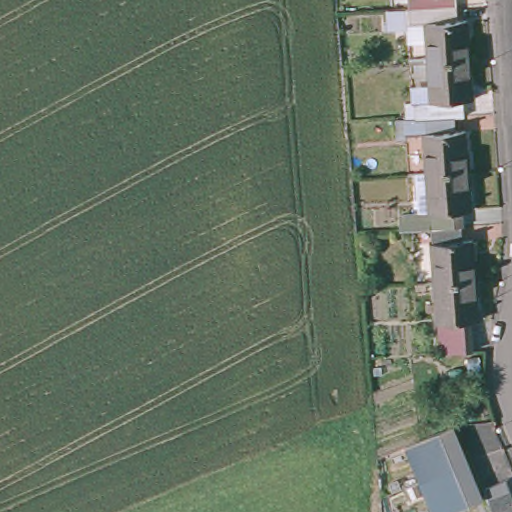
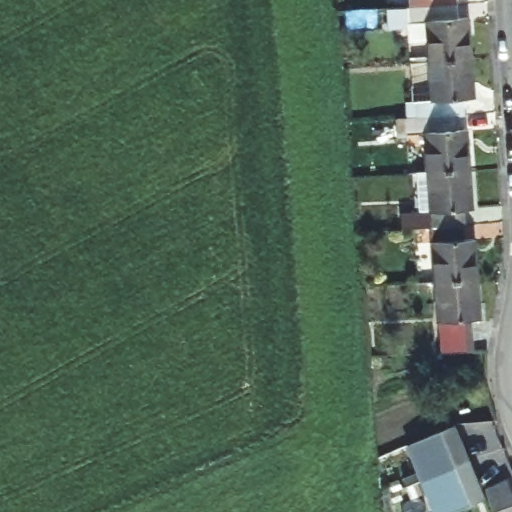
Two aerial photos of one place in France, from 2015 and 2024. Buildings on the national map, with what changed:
unchanged [(402,10),(401,0),(453,0),(453,5),(402,10)]
unchanged [(422,25),(403,26),(402,10),(453,5),(454,20),(463,20),(466,61),(425,64),(422,25)]
unchanged [(397,103),(427,101),(425,64),(466,61),(470,100),(459,101),(460,117),(453,117),(398,122),(397,103)]
unchanged [(420,140),(392,142),(391,123),(398,122),(453,117),(454,136),(462,136),(465,176),(423,179),(420,140)]
unchanged [(468,215),(458,215),(460,227),(425,230),(410,232),(408,220),(426,219),(423,179),(465,176),(468,215)]
unchanged [(460,242),(470,241),(473,281),(430,285),(425,230),(460,227),(460,242)]
unchanged [(476,323),(467,324),(470,355),(436,357),(430,285),(473,281),(476,323)]
unchanged [(455,426),(485,498),(452,512),(430,512),(405,447),(455,426)]
unchanged [(512,488),(512,512),(510,507),(495,512),(477,512),(474,502),(505,492),(505,491),(512,488)]

